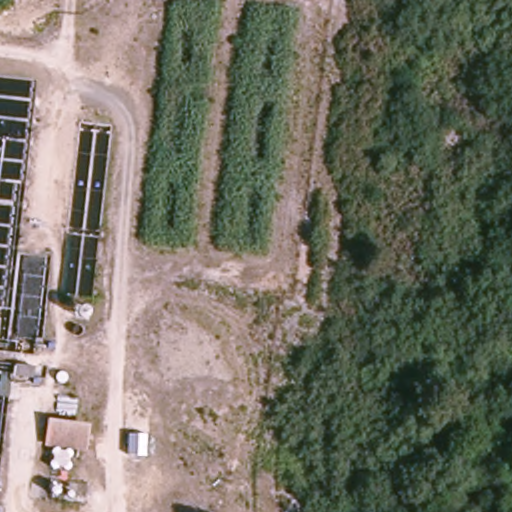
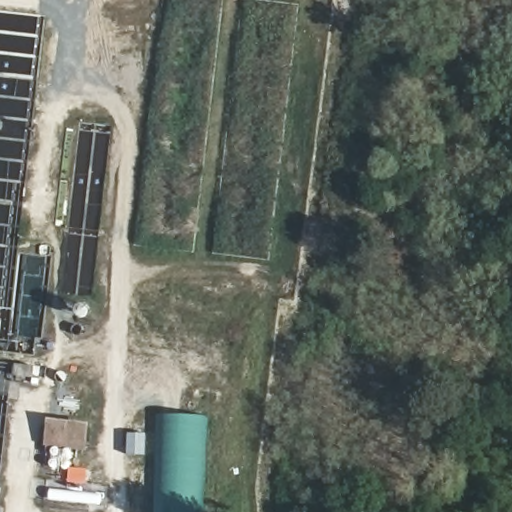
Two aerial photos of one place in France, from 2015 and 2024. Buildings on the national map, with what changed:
new [(157,416),(206,418),(202,512),(154,512),(157,416)]
unchanged [(87,453),(46,450),(49,422),(90,426),(87,453)]

